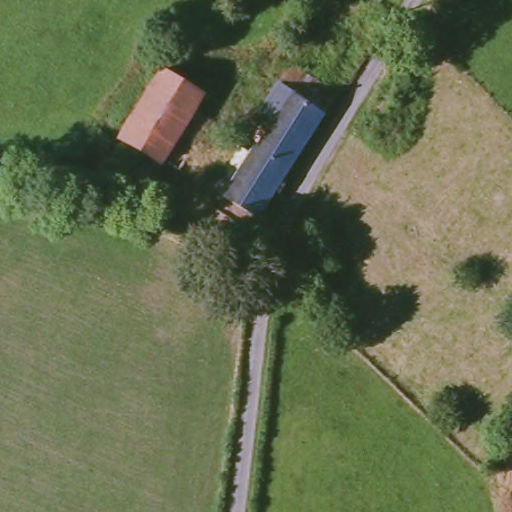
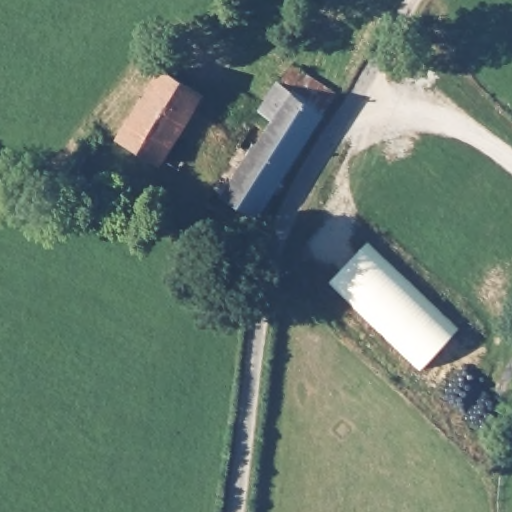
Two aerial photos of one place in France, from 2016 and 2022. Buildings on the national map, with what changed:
unchanged [(280,120),(266,110),(282,84),(286,86),(299,66),(338,91),(342,95),(310,148),(276,126),(280,120)]
unchanged [(208,101),(201,113),(187,137),(200,146),(186,175),(170,165),(166,170),(122,143),(165,73),(208,101)]
unchanged [(310,148),(263,222),(258,219),(249,233),(210,205),(230,172),(238,176),(251,158),(242,153),(248,144),(260,125),(271,134),(276,126),(310,148)]
new [(458,332),(421,372),(329,284),(369,242),(458,332)]

